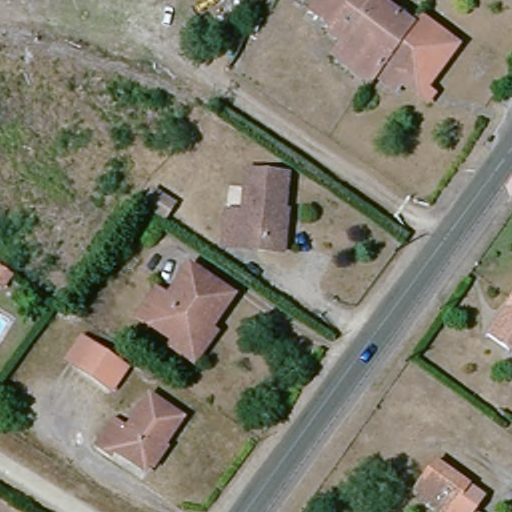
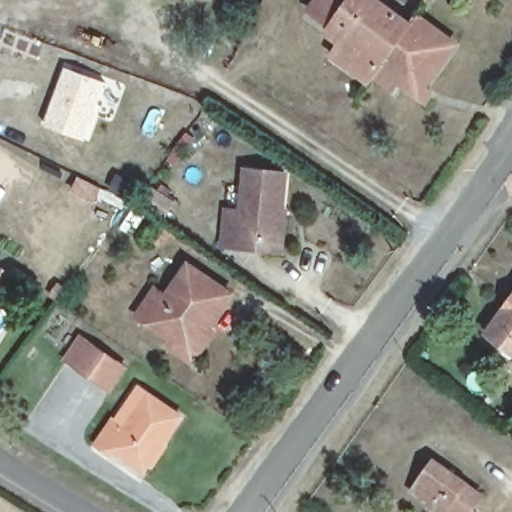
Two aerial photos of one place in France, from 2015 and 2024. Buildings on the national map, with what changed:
unchanged [(404,75),(394,89),(374,74),(369,81),(351,66),(359,52),(327,30),(333,23),(311,6),(315,0),(382,0),(398,10),(395,14),(410,26),(420,13),(458,40),(422,88),(404,75)]
new [(45,123),(66,67),(108,82),(86,139),(45,123)]
unchanged [(239,249),(221,246),(225,207),(242,209),(247,169),(287,175),(278,242),(276,255),(239,249)]
unchanged [(167,331),(148,320),(138,310),(156,283),(166,292),(189,260),(233,291),(214,320),(192,349),(167,331)]
unchanged [(0,291),(0,270),(11,277),(3,293),(0,291)]
unchanged [(512,290),(512,350),(484,331),(512,290)]
unchanged [(118,389),(84,367),(72,359),(88,336),(99,343),(132,365),(118,389)]
unchanged [(112,448),(108,454),(95,445),(112,420),(125,427),(146,395),(180,418),(145,470),(112,448)]
unchanged [(472,510),(455,498),(444,512),(443,512),(413,489),(435,458),(483,493),(472,510)]

